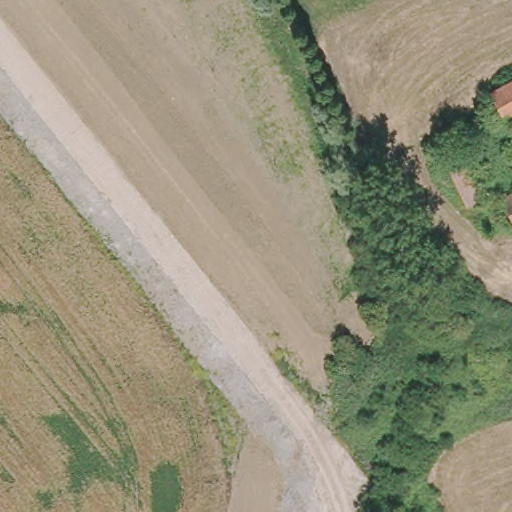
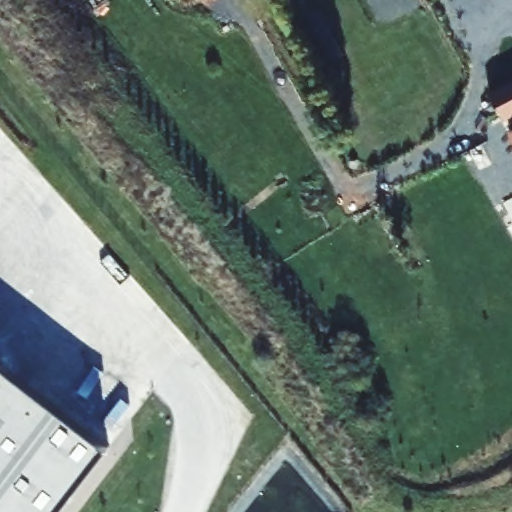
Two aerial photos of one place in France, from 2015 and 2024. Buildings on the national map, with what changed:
unchanged [(490,93),(512,81),(512,113),(502,118),(490,93)]
demolished [(458,130),(488,189),(468,199),(444,152),(458,130)]
unchanged [(512,130),(512,135),(510,131),(512,130)]
unchanged [(512,192),(512,216),(502,198),(512,192)]
new [(57,512),(0,512),(0,359),(111,443),(57,512)]

